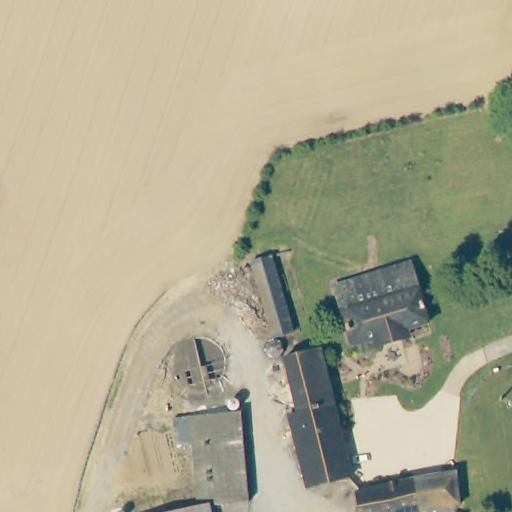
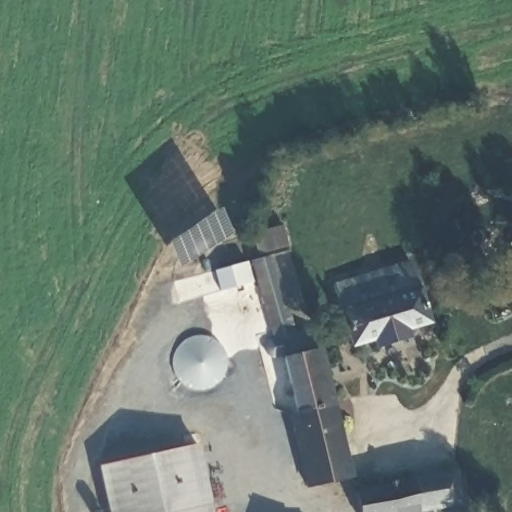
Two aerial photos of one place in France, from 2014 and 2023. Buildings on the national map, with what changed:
unchanged [(290,327),(269,333),(248,259),(268,253),(290,327)]
unchanged [(427,325),(406,330),(407,338),(375,346),(373,340),(350,345),(333,285),(409,263),(427,325)]
unchanged [(278,350),(270,355),(262,352),(259,346),(259,340),(264,334),(269,334),(274,335),(278,337),(279,343),(278,350)]
unchanged [(351,472),(305,482),(292,415),(297,412),(284,353),(320,345),(351,472)]
demolished [(239,502),(190,504),(184,415),(233,413),(239,502)]
new [(96,465),(196,445),(209,503),(173,512),(107,512),(96,465)]
unchanged [(461,500),(401,512),(344,512),(342,502),(359,498),(358,487),(454,467),(461,500)]
unchanged [(211,512),(173,512),(209,503),(211,512)]

